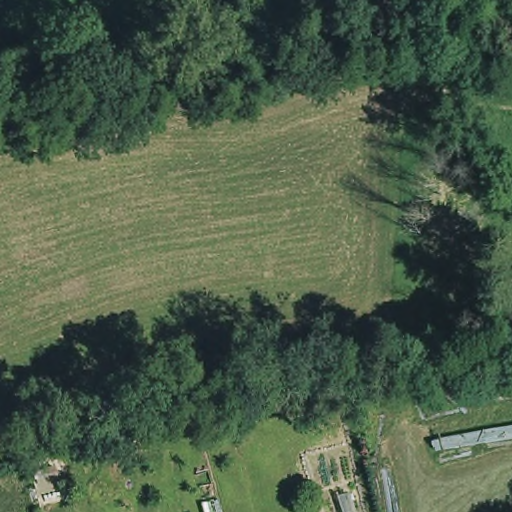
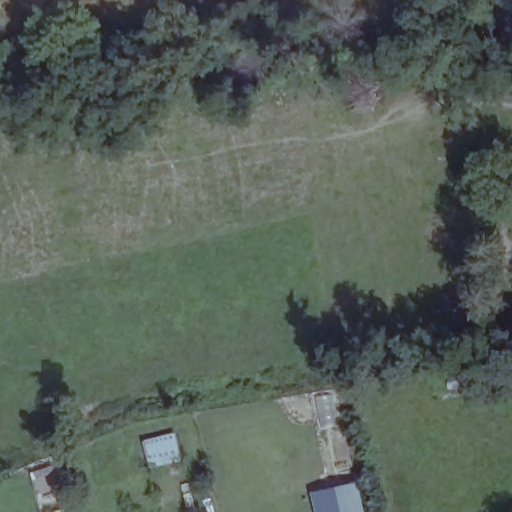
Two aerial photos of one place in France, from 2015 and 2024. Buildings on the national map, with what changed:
new [(354,483),(361,512),(314,512),(308,493),(354,483)]

